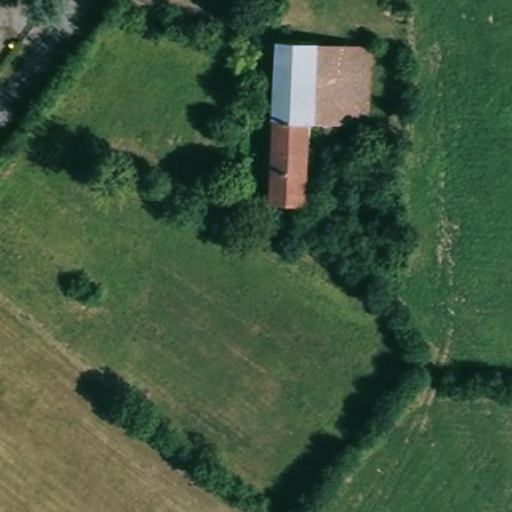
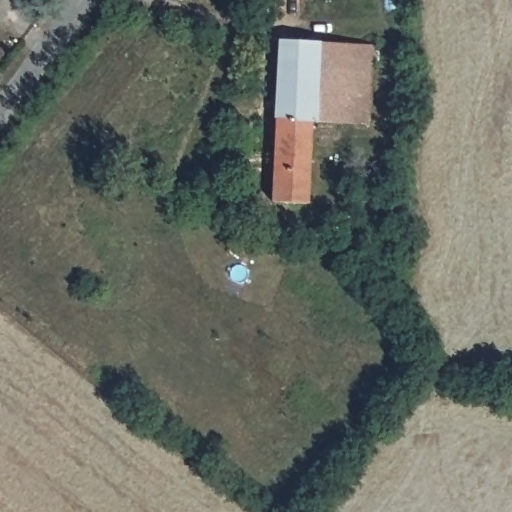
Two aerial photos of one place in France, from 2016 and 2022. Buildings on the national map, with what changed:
unchanged [(313,119),(311,201),(273,201),(273,41),(300,41),(313,42),(313,119)]
unchanged [(313,119),(313,42),(370,43),(370,120),(313,119)]
unchanged [(359,292),(347,283),(370,260),(366,249),(378,238),(405,260),(369,300),(359,292)]

